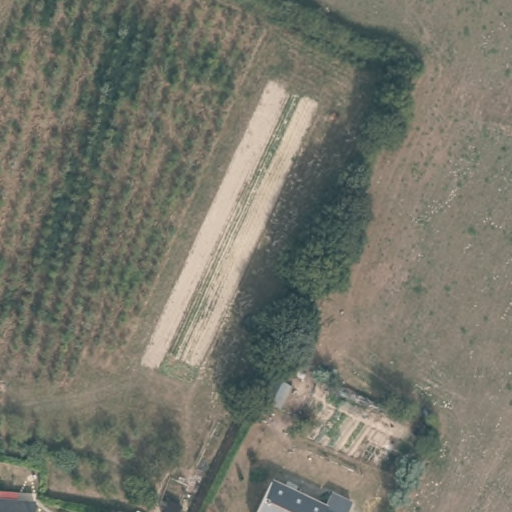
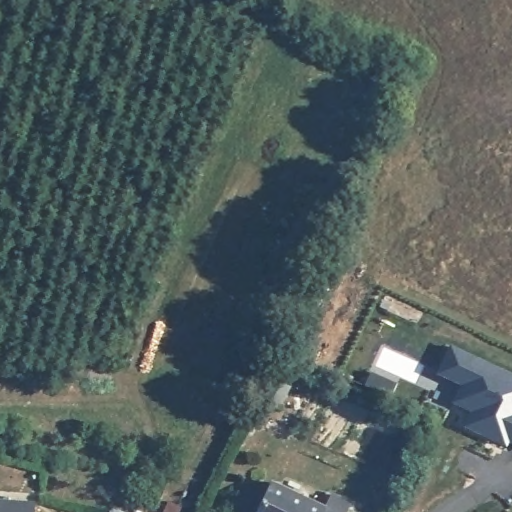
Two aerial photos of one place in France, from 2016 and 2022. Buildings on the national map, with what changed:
new [(509,442),(507,447),(463,427),(471,412),(452,404),(460,386),(437,375),(450,346),(512,374),(512,444),(509,442)]
unchanged [(267,492),(318,512),(258,512),(267,492)]
unchanged [(331,500),(348,507),(349,508),(347,512),(325,512),(331,500)]
unchanged [(164,501),(170,501),(180,505),(176,512),(159,512),(164,501)]
unchanged [(34,512),(0,512),(0,503),(34,505),(34,512)]

